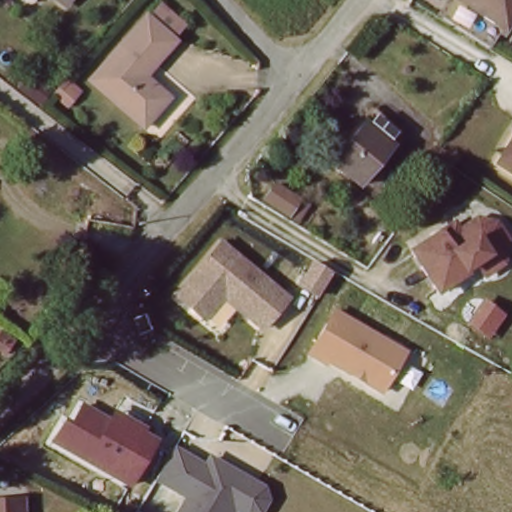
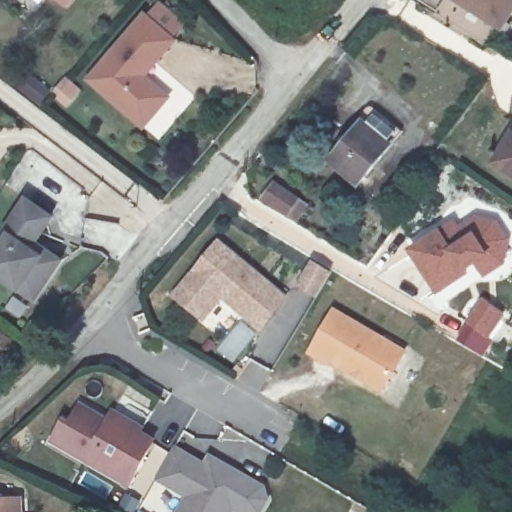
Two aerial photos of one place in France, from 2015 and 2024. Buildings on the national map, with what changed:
unchanged [(72,11),(57,0),(80,0),(72,11)]
unchanged [(512,5),(488,45),(439,14),(448,0),(512,0),(512,5)]
unchanged [(165,98),(139,128),(85,81),(140,16),(153,1),(184,26),(171,41),(140,76),(165,98)]
unchanged [(371,107),(400,129),(358,185),(329,163),(371,107)]
unchanged [(502,145),(507,137),(512,130),(512,167),(495,156),(502,145)]
unchanged [(268,182),(305,206),(292,222),(257,198),(268,182)]
new [(15,293),(0,283),(0,245),(4,239),(0,237),(0,235),(21,204),(47,221),(30,246),(40,254),(56,264),(40,288),(30,303),(15,293)]
unchanged [(348,207),(358,215),(347,231),(337,222),(348,207)]
unchanged [(484,276),(476,263),(464,272),(466,275),(438,293),(411,253),(453,225),(459,234),(467,229),(466,227),(475,220),(495,224),(507,242),(505,257),(500,259),(503,264),(484,276)]
unchanged [(289,297),(261,330),(224,301),(207,321),(174,294),(220,240),(289,297)]
unchanged [(309,264),(326,274),(313,297),(295,287),(309,264)]
unchanged [(507,317),(492,337),(470,323),(486,302),(507,317)]
unchanged [(407,349),(381,393),(311,356),(336,309),(407,349)]
unchanged [(146,427),(143,431),(157,441),(130,488),(49,443),(62,417),(69,420),(82,402),(109,417),(115,409),(146,427)]
unchanged [(205,462),(211,453),(264,483),(271,496),(263,512),(238,512),(234,510),(233,512),(175,512),(182,496),(157,480),(178,445),(205,462)]
unchanged [(19,512),(0,512),(0,496),(17,494),(19,512)]

